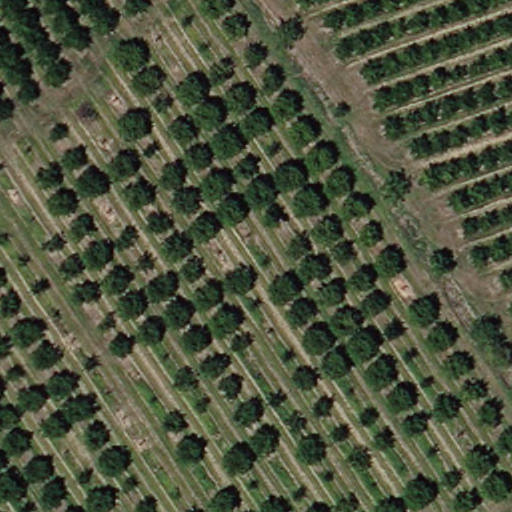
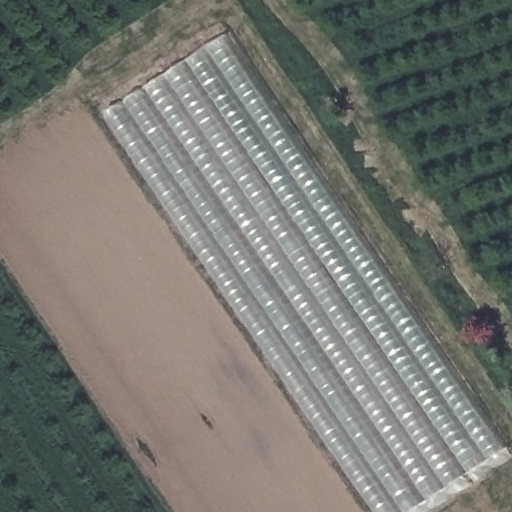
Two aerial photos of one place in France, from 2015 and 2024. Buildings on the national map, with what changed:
new [(409,512),(368,512),(101,116),(224,36),(505,450),(409,512)]

